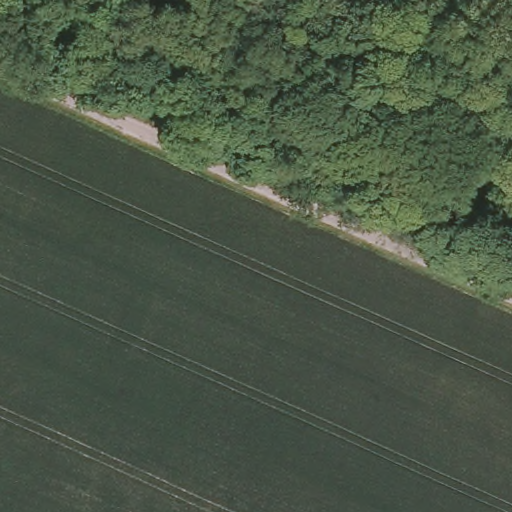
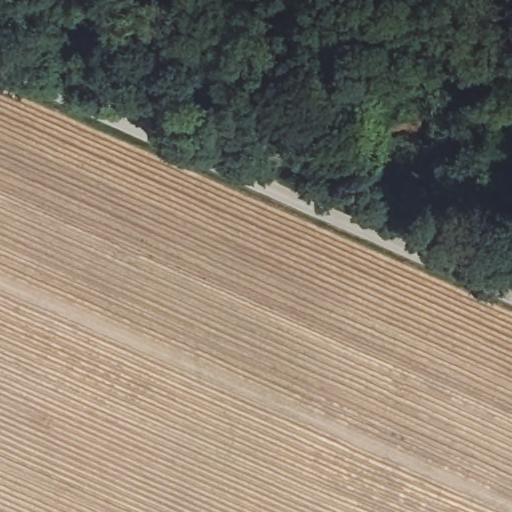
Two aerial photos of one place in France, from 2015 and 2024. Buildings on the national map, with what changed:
unchanged [(405,221),(387,212),(396,192),(414,201),(405,221)]

